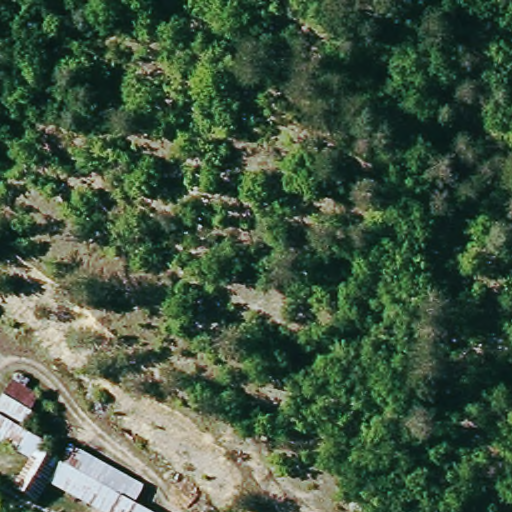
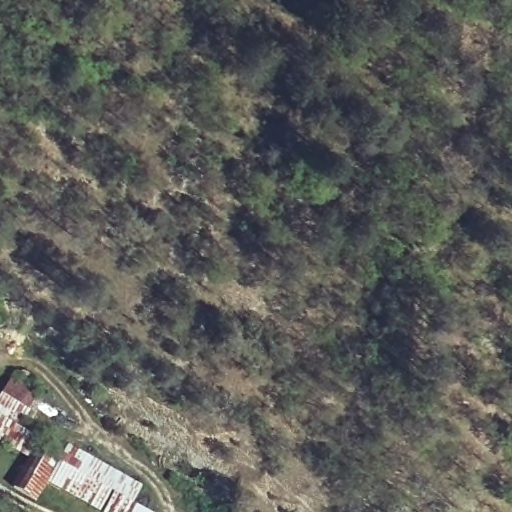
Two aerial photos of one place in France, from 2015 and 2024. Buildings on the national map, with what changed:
unchanged [(28,379),(25,387),(37,395),(23,431),(47,447),(42,455),(59,464),(70,446),(143,487),(135,506),(146,512),(95,512),(52,488),(41,508),(15,493),(29,462),(0,445),(0,400),(15,375),(28,379)]

